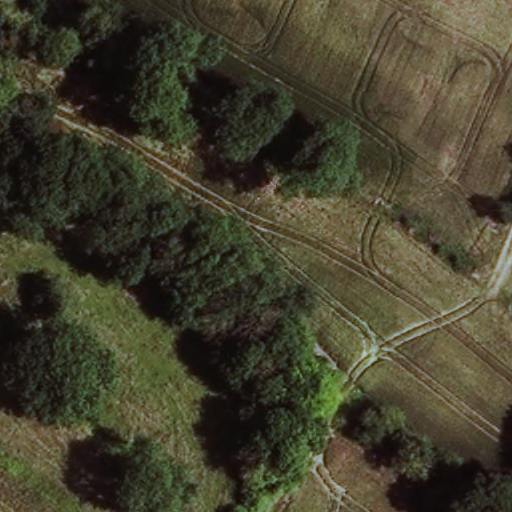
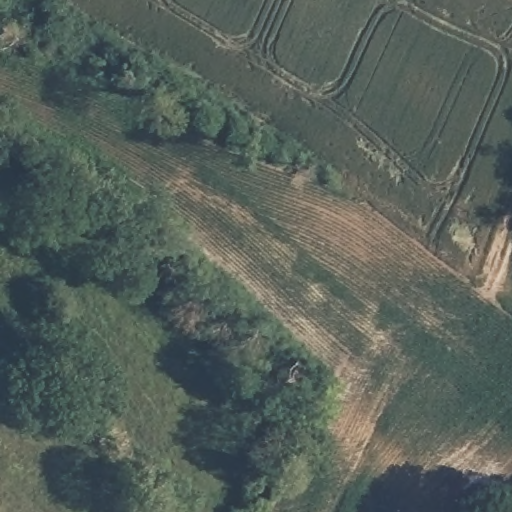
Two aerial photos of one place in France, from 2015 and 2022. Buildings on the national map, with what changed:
[]

